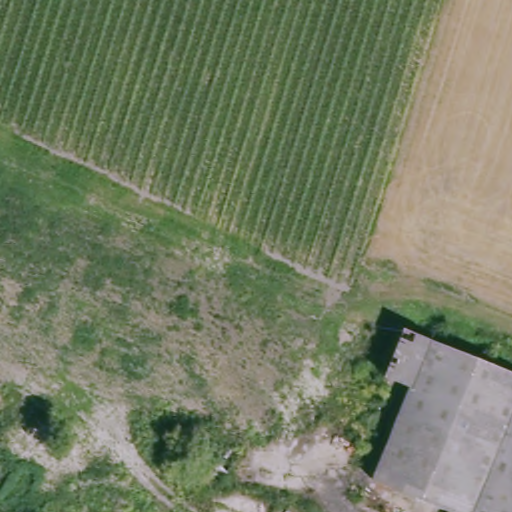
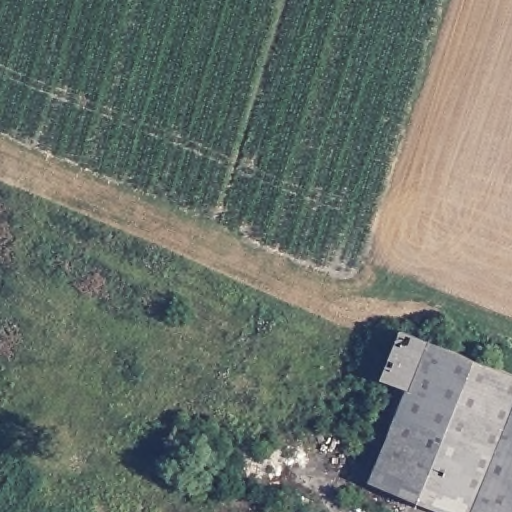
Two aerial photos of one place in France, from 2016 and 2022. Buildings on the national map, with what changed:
unchanged [(373,480),(408,388),(386,378),(405,331),(512,374),(512,512),(452,512),(373,480)]

